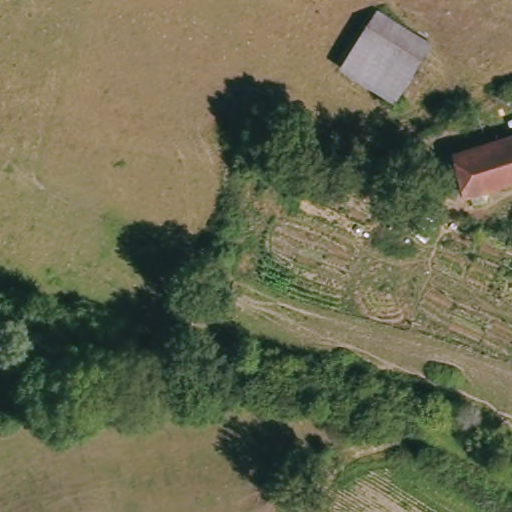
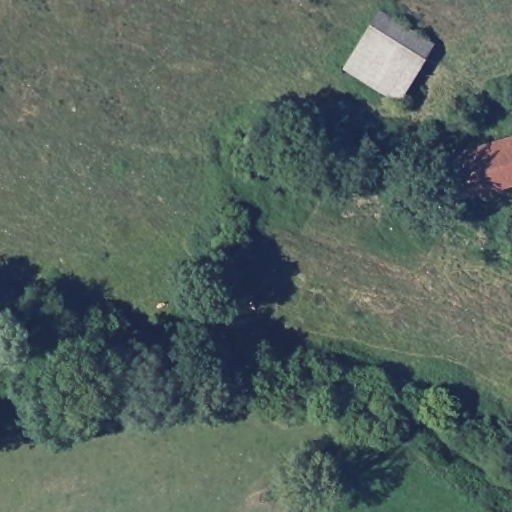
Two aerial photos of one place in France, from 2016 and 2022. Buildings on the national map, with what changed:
unchanged [(385,10),(435,44),(399,102),(346,68),(385,10)]
unchanged [(458,191),(448,159),(512,140),(512,188),(461,201),(458,191)]

